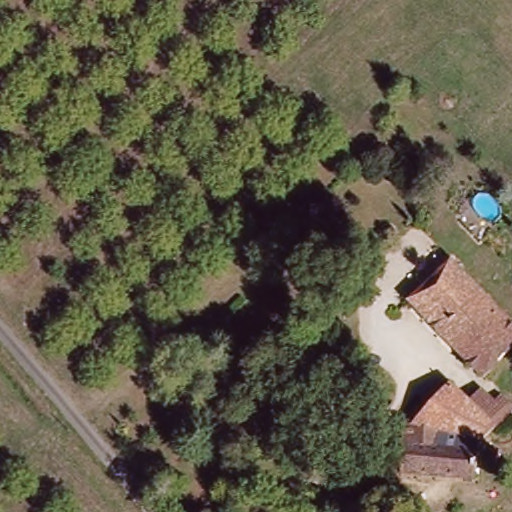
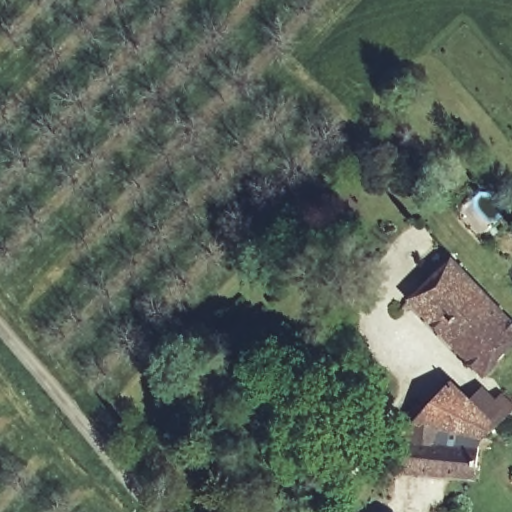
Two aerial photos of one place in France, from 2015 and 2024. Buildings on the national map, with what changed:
unchanged [(412,303),(452,263),(462,275),(512,327),(512,353),(487,378),(412,303)]
unchanged [(420,405),(430,406),(454,382),(475,404),(494,423),(482,436),(443,433),(407,426),(420,405)]
unchanged [(443,443),(479,446),(477,479),(410,475),(407,426),(443,433),(443,443)]

